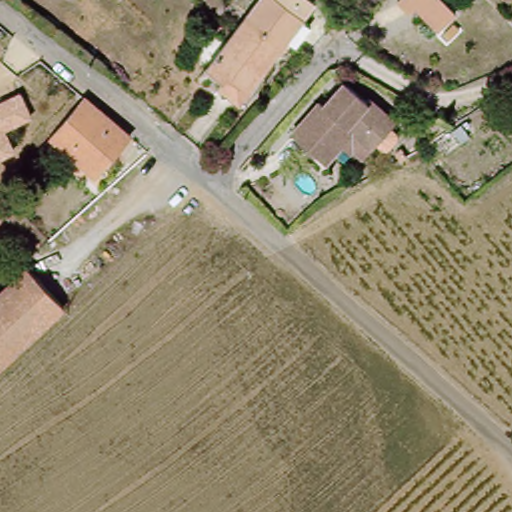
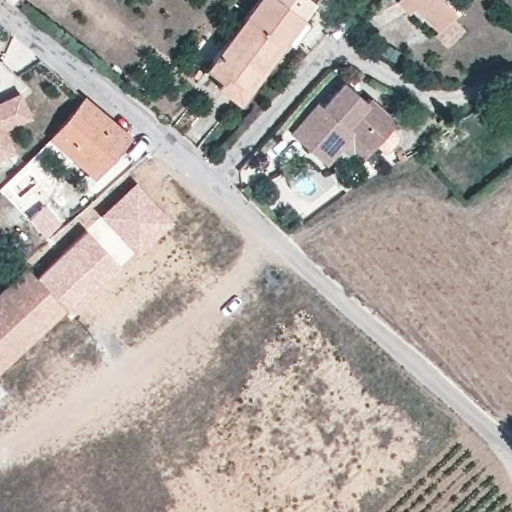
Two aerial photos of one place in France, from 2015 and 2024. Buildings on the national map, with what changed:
unchanged [(282,43),(280,46),(243,17),(255,0),(301,0),(309,5),(298,22),(306,28),(290,50),(287,48),(282,43)]
unchanged [(457,14),(440,30),(416,4),(410,9),(401,0),(445,0),(457,14)]
unchanged [(211,76),(204,71),(243,17),(280,46),(268,63),(245,95),(237,105),(216,90),(221,84),(211,76)]
unchanged [(348,155),(340,163),(331,155),(322,165),(289,135),(318,103),(322,107),(342,85),(364,105),(367,102),(392,126),(369,152),(359,164),(348,155)]
unchanged [(22,91),(33,118),(7,130),(16,153),(0,160),(0,101),(22,91)]
unchanged [(89,192),(67,175),(72,168),(43,144),(76,101),(123,140),(108,158),(114,162),(89,192)]
new [(137,255),(99,215),(136,181),(174,221),(137,255)]
new [(44,203),(60,222),(44,236),(28,216),(44,203)]
new [(122,266),(69,318),(60,309),(32,279),(85,228),(122,266)]
unchanged [(23,269),(60,309),(0,364),(0,291),(23,269)]

